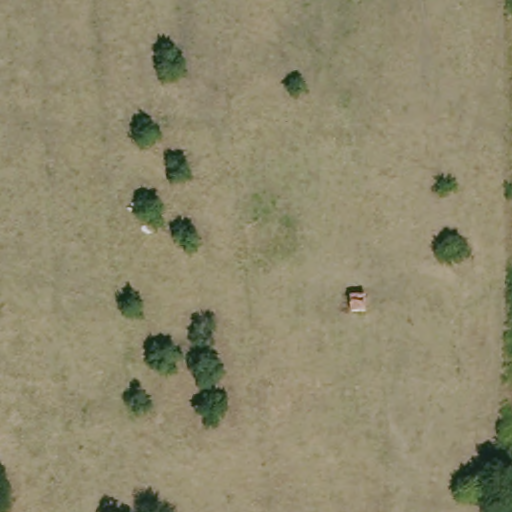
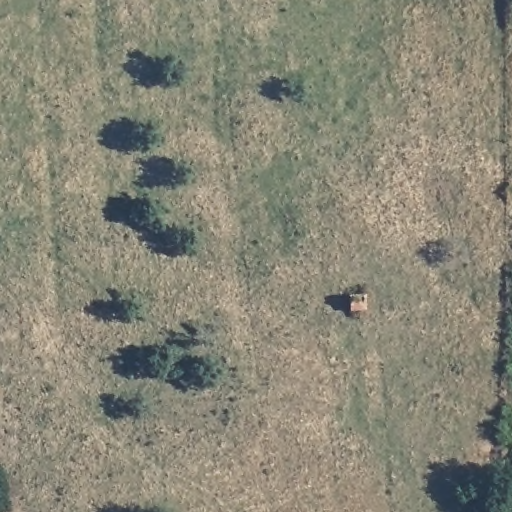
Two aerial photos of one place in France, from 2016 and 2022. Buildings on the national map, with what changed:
unchanged [(350,297),(365,297),(365,311),(351,311),(350,297)]

